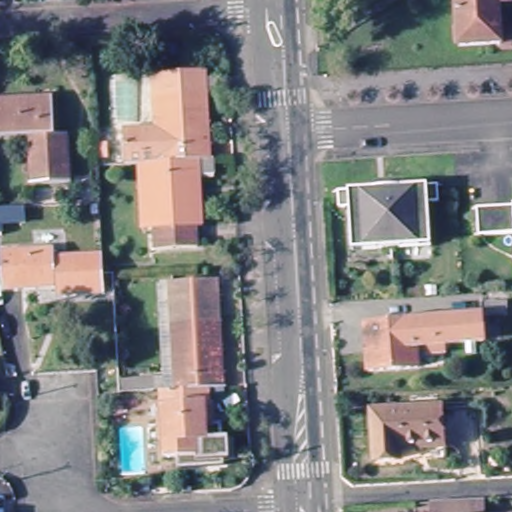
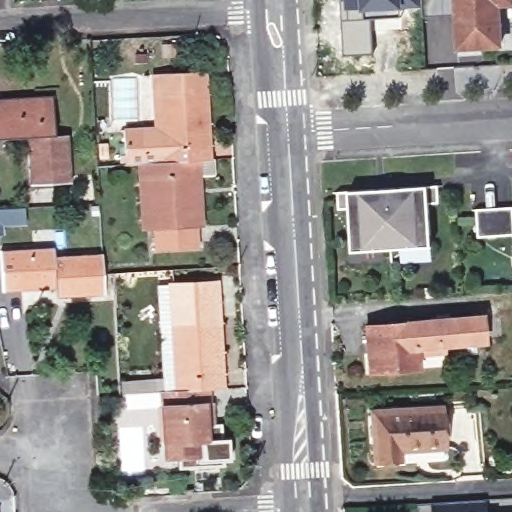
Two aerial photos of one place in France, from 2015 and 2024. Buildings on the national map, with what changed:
new [(458,14),(423,17),(422,7),(404,9),(400,9),(400,17),(371,19),(373,53),(344,54),(341,0),(346,1),(345,0),(457,0),(458,14)]
unchanged [(499,3),(501,43),(460,46),(457,0),(512,0),(512,1),(499,3)]
unchanged [(219,164),(202,166),(153,168),(131,169),(131,144),(131,136),(147,135),(164,133),(163,100),(162,75),(213,73),(214,98),(216,130),(218,152),(219,164)]
unchanged [(55,143),(70,143),(73,183),(33,185),(29,138),(0,140),(0,100),(51,97),(55,143)]
unchanged [(109,143),(109,158),(96,160),(95,144),(109,143)]
unchanged [(202,182),(203,201),(206,255),(157,257),(153,168),(202,166),(219,164),(223,164),(224,182),(202,182)]
unchanged [(345,241),(343,212),(333,212),(332,196),(433,189),(433,207),(425,208),(426,237),(427,247),(412,248),(357,251),(346,251),(345,241)]
unchanged [(478,231),(476,204),(512,202),(512,229),(478,231)]
unchanged [(104,297),(65,298),(65,290),(3,293),(1,252),(54,249),(56,257),(101,256),(103,272),(104,297)]
unchanged [(206,390),(178,392),(172,392),(170,373),(166,304),(166,285),(215,284),(215,302),(218,351),(214,351),(216,389),(206,390)]
unchanged [(412,367),(366,371),(362,326),(475,315),(474,301),(503,299),(504,312),(504,341),(476,341),(411,345),(412,367)]
unchanged [(170,373),(172,392),(156,393),(156,399),(119,398),(118,376),(170,373)]
unchanged [(178,392),(206,390),(206,406),(203,406),(204,428),(208,428),(207,423),(219,423),(220,466),(174,467),(173,457),(160,458),(156,399),(156,393),(172,392),(178,392)]
unchanged [(445,411),(446,452),(402,455),(403,464),(377,465),(374,414),(445,411)]
unchanged [(151,482),(151,493),(142,494),(142,483),(151,482)]
unchanged [(490,512),(438,512),(490,509),(490,512)]

